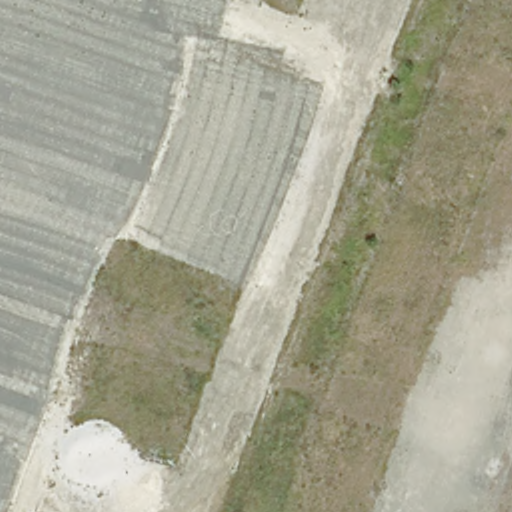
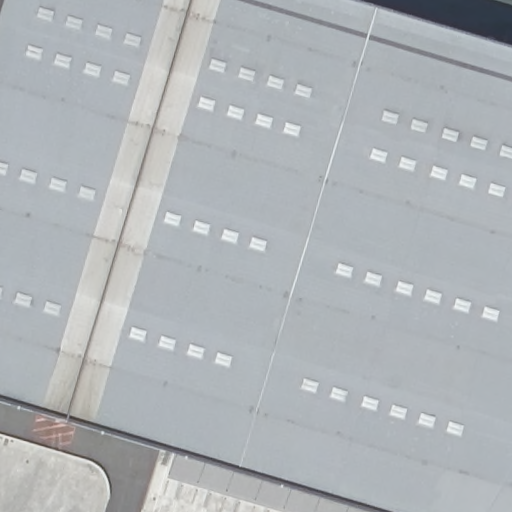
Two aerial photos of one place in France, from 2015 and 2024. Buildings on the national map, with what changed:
new [(343,0),(512,50),(512,512),(380,512),(0,399),(0,0),(343,0)]

